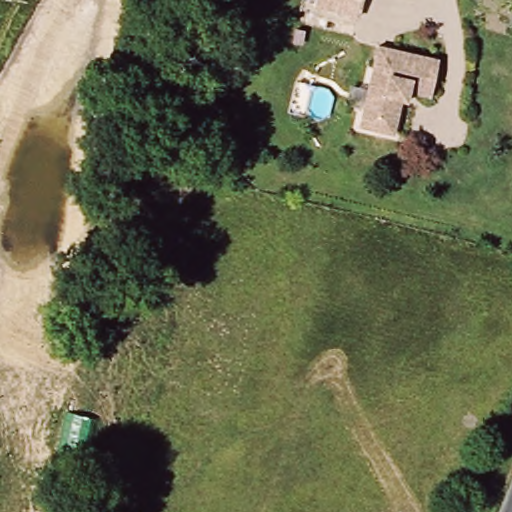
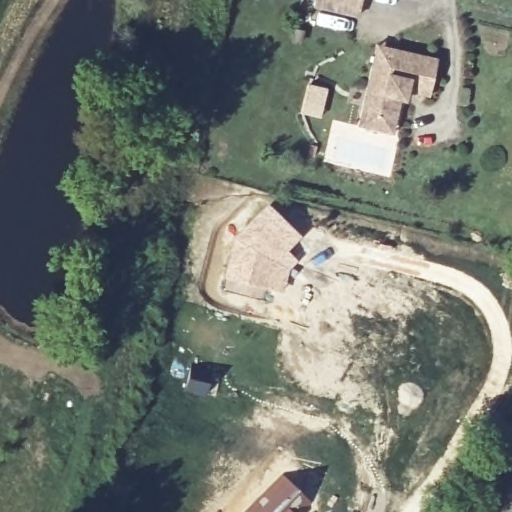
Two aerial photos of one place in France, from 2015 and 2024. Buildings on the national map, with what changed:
unchanged [(315,0),(361,0),(355,23),(312,11),(315,0)]
unchanged [(376,137),(362,134),(376,64),(378,53),(392,56),(441,65),(434,102),(409,98),(407,107),(403,106),(398,126),(394,140),(376,137)]
new [(232,240),(245,225),(267,203),(301,236),(288,250),(297,260),(289,270),(283,293),(266,288),(263,300),(222,291),(232,240)]
new [(312,504),(304,512),(242,512),(281,472),(312,504)]

